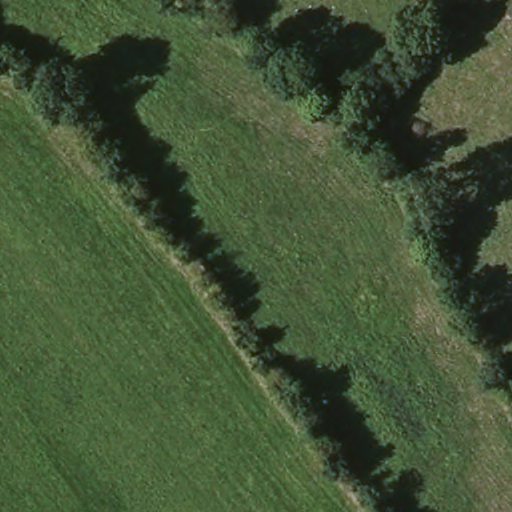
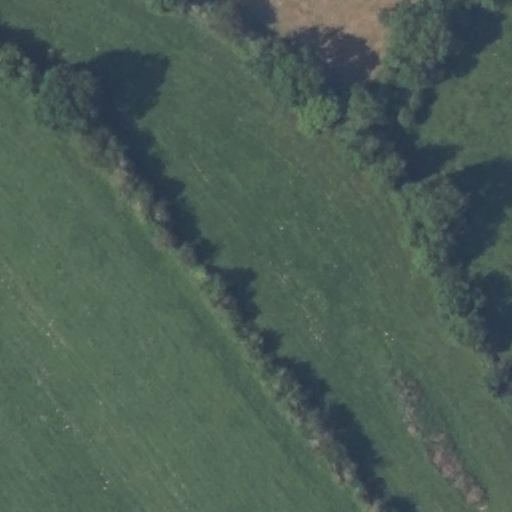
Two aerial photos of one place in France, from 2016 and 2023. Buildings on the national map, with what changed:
[]

